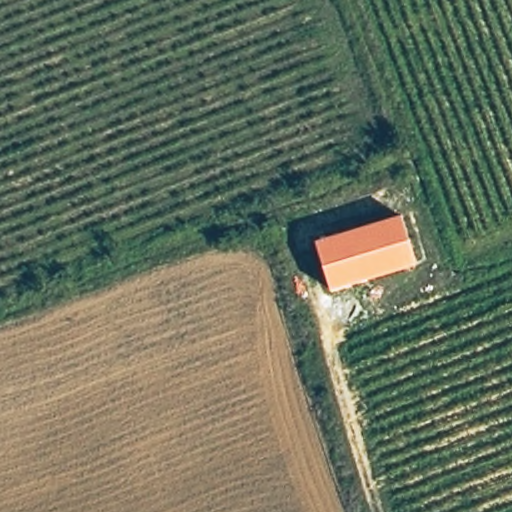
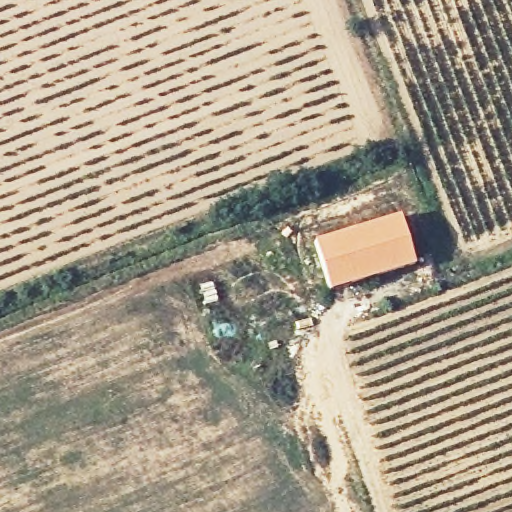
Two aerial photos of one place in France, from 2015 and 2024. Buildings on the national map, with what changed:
unchanged [(400,214),(415,265),(330,291),(315,241),(400,214)]

